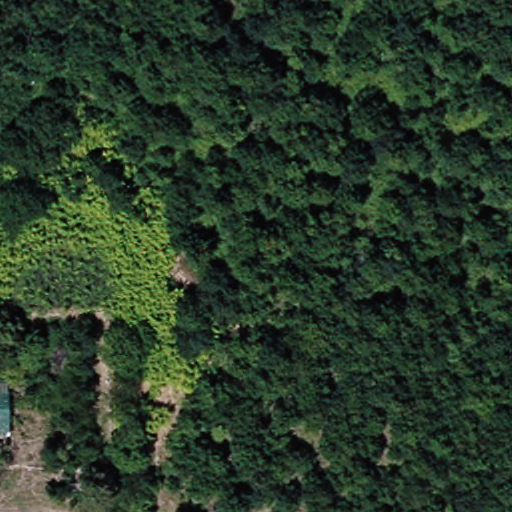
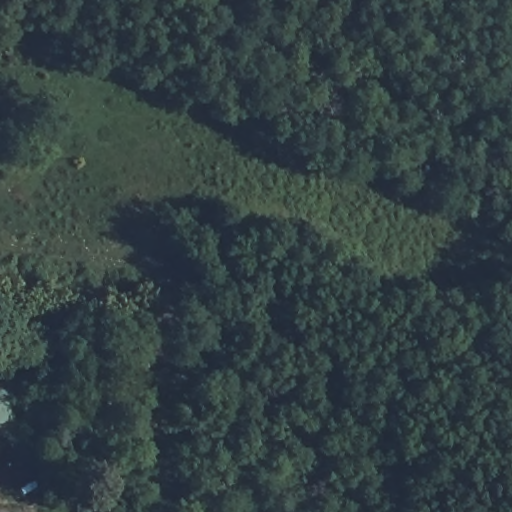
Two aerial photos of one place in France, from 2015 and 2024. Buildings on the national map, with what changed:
unchanged [(16,433),(0,433),(0,381),(13,380),(16,433)]

